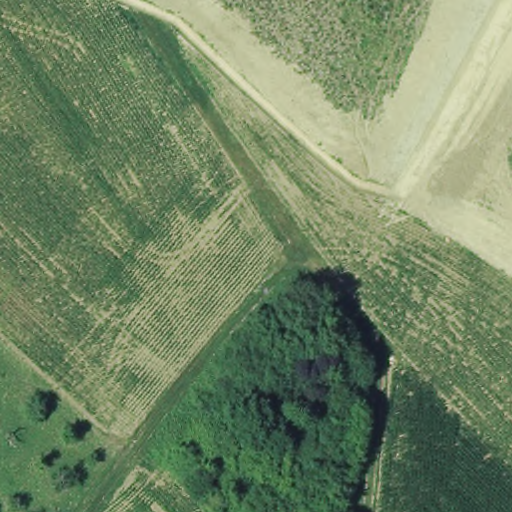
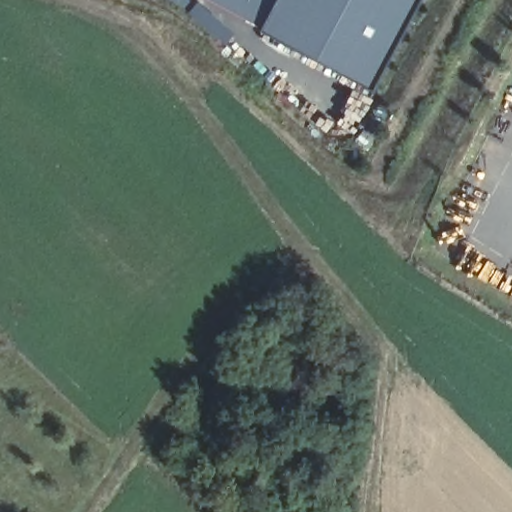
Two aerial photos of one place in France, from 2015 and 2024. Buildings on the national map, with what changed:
new [(372,93),(259,32),(276,0),(421,0),(372,93)]

